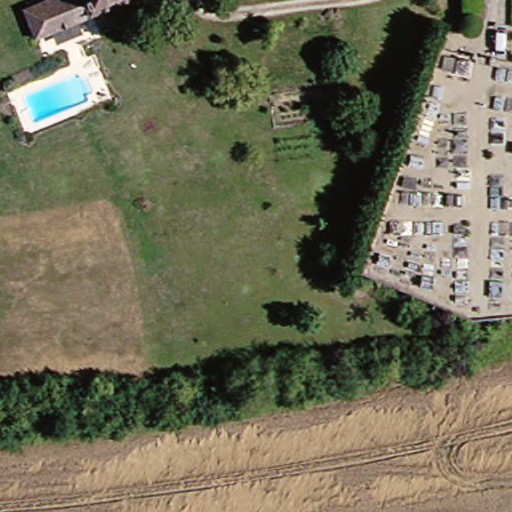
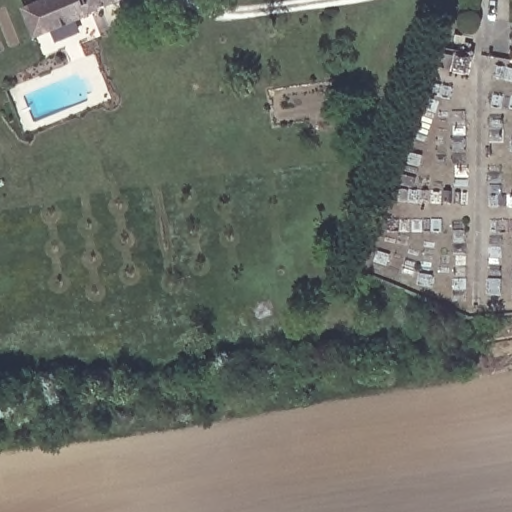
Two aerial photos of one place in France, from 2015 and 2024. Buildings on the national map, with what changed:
unchanged [(15,7),(30,0),(124,0),(25,40),(15,7)]

